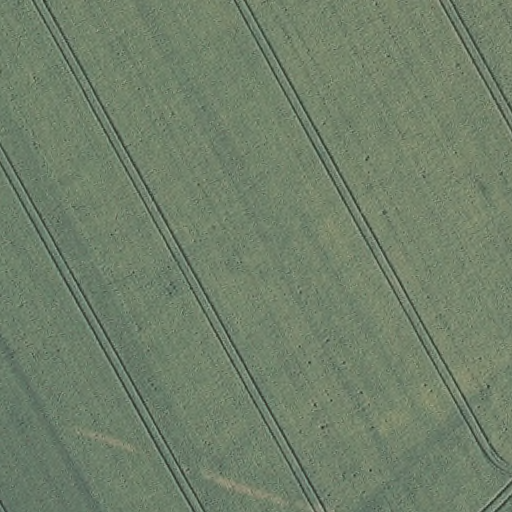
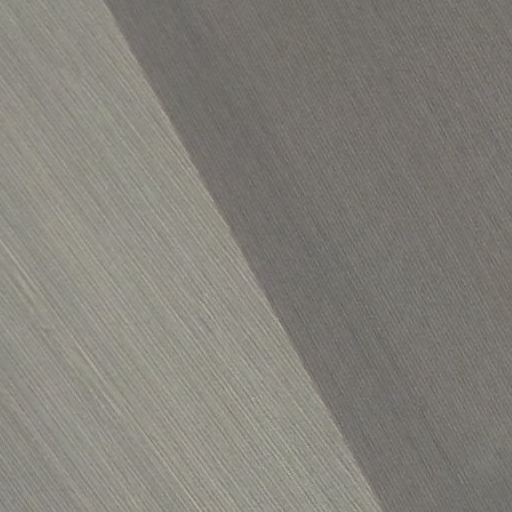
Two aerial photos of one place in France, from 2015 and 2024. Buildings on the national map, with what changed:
[]

